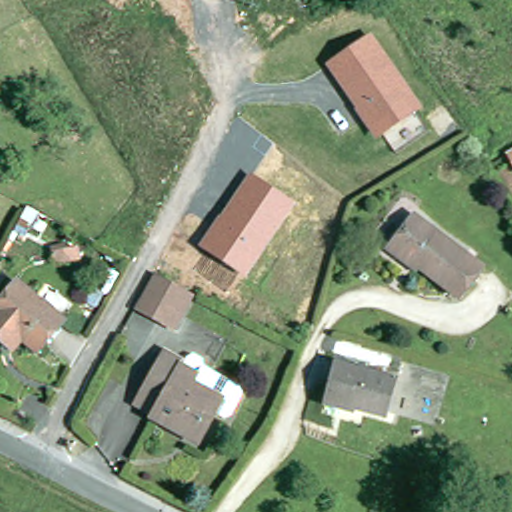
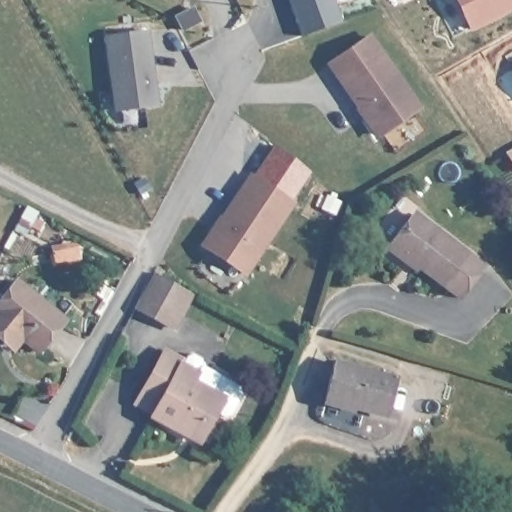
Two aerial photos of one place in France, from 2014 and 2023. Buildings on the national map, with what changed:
new [(300,35),(289,0),(334,0),(341,22),(300,35)]
new [(455,0),(512,0),(512,10),(470,31),(455,0)]
new [(158,106),(113,111),(105,35),(150,29),(158,106)]
unchanged [(425,109),(376,140),(325,64),(372,31),(425,109)]
unchanged [(510,151),(512,150),(512,155),(510,151)]
unchanged [(297,204),(248,279),(200,248),(248,174),(297,204)]
unchanged [(387,249),(390,245),(414,215),(485,268),(461,298),(420,268),(417,272),(387,249)]
unchanged [(172,328),(136,309),(155,273),(191,292),(172,328)]
unchanged [(65,320),(38,352),(23,339),(13,351),(0,339),(0,303),(18,282),(65,320)]
unchanged [(165,356),(183,366),(186,361),(192,359),(200,364),(202,369),(240,391),(242,399),(230,421),(224,423),(210,416),(195,445),(152,422),(153,419),(136,409),(139,404),(165,356)]
unchanged [(325,404),(326,399),(336,363),(396,380),(387,417),(355,407),(353,412),(325,404)]

